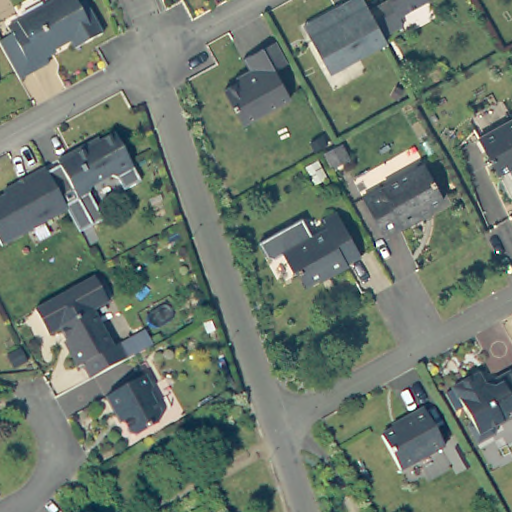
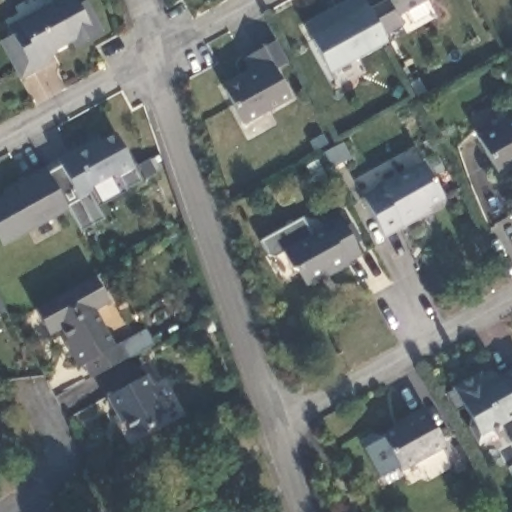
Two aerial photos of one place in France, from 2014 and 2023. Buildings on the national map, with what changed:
unchanged [(76,46),(72,40),(46,55),(50,60),(20,76),(0,40),(14,32),(10,25),(53,2),(51,0),(86,0),(103,31),(76,46)]
unchanged [(384,40),(333,71),(311,37),(314,15),(327,19),(342,9),(344,10),(348,8),(344,0),(361,0),(364,5),(379,33),(384,40)]
unchanged [(373,0),(415,0),(397,11),(402,20),(379,33),(364,5),(373,0)]
unchanged [(242,125),(222,89),(244,76),(234,59),(240,55),(256,45),(259,50),(272,41),(284,61),(271,70),(288,98),(242,125)]
unchanged [(500,173),(479,136),(512,117),(512,166),(500,173)]
unchanged [(136,167),(121,177),(111,175),(93,184),(94,190),(80,198),(59,159),(102,135),(106,141),(118,135),(136,167)]
unchanged [(439,198),(416,212),(416,216),(382,235),(359,196),(419,161),(439,198)]
unchanged [(0,245),(0,194),(1,194),(0,191),(0,188),(41,165),(65,210),(0,245)]
unchanged [(362,258),(347,266),(350,272),(329,284),(325,279),(304,290),(294,273),(290,273),(282,258),(325,233),(320,225),(337,214),(362,258)]
unchanged [(282,258),(280,255),(274,258),(268,256),(259,241),(301,217),(313,240),(282,258)]
unchanged [(128,360),(109,370),(91,380),(90,380),(79,361),(74,364),(68,352),(70,350),(58,329),(47,335),(33,310),(92,277),(106,302),(92,310),(111,346),(116,344),(117,345),(144,330),(152,345),(128,360)]
unchanged [(512,417),(489,430),(491,435),(472,445),(460,422),(464,420),(447,388),(473,372),(482,386),(495,379),(495,376),(512,367),(512,418),(512,417)]
unchanged [(150,385),(149,392),(159,410),(156,421),(132,435),(128,431),(114,412),(109,413),(101,398),(145,376),(150,385)]
unchanged [(438,445),(398,470),(378,435),(406,418),(404,415),(417,407),(438,445)]

